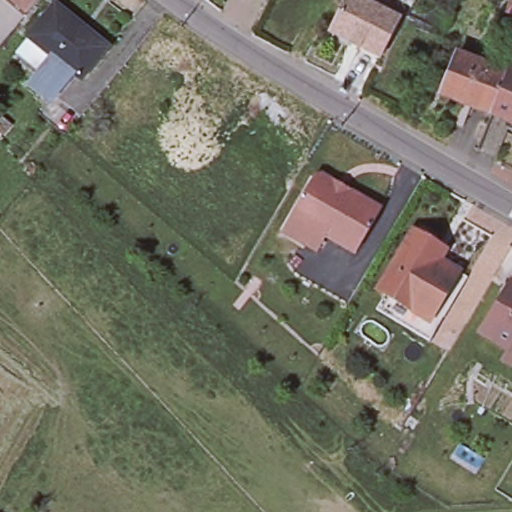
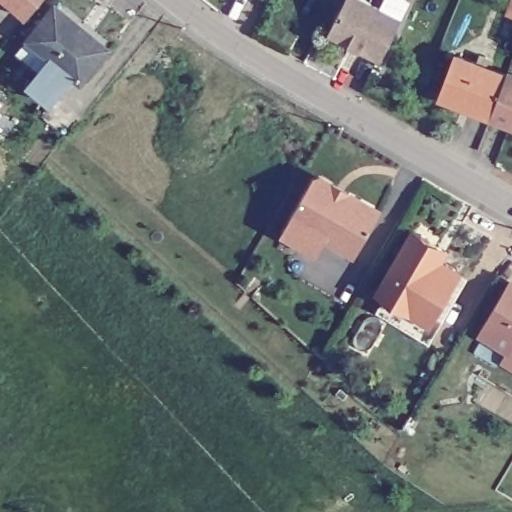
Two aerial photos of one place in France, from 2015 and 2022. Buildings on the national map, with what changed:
unchanged [(5,0),(40,0),(25,17),(5,0)]
unchanged [(353,0),(359,0),(373,8),(405,23),(385,64),(334,38),(353,0)]
unchanged [(507,14),(512,1),(512,15),(507,14)]
unchanged [(28,38),(55,4),(108,48),(80,81),(73,75),(51,57),(28,38)]
unchanged [(324,31),(327,25),(333,28),(330,34),(324,31)]
unchanged [(437,90),(451,54),(501,73),(485,115),(466,107),(435,96),(437,90)]
unchanged [(50,104),(28,86),(51,57),(73,75),(50,104)]
unchanged [(512,73),(512,125),(485,115),(501,73),(502,70),(512,73)]
unchanged [(367,238),(355,259),(345,253),(324,241),(290,221),(293,215),(305,194),(313,182),(321,182),(332,188),(380,216),(367,238)]
unchanged [(447,291),(433,315),(430,321),(377,290),(385,278),(397,255),(412,230),(418,234),(421,233),(429,238),(430,241),(435,244),(446,251),(440,261),(443,263),(447,262),(455,267),(455,270),(458,272),(447,291)]
unchanged [(508,350),(478,332),(486,319),(509,281),(512,282),(512,344),(508,350)]

